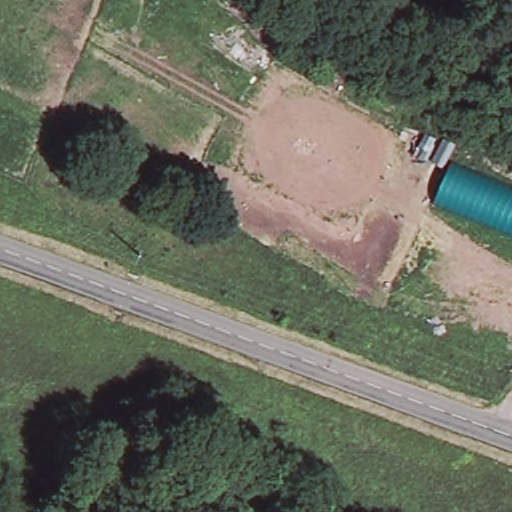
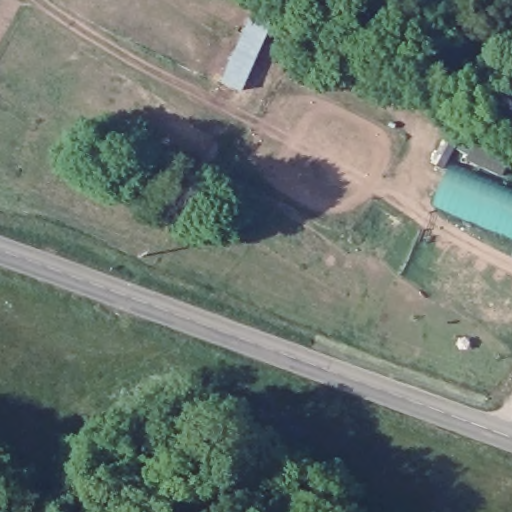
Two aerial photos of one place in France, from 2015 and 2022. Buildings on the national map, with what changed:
new [(268,24),(238,89),(217,81),(247,15),(268,24)]
unchanged [(435,199),(451,165),(512,189),(512,232),(435,199)]

